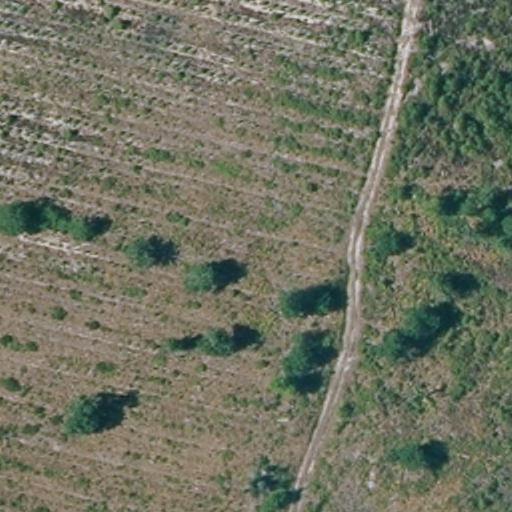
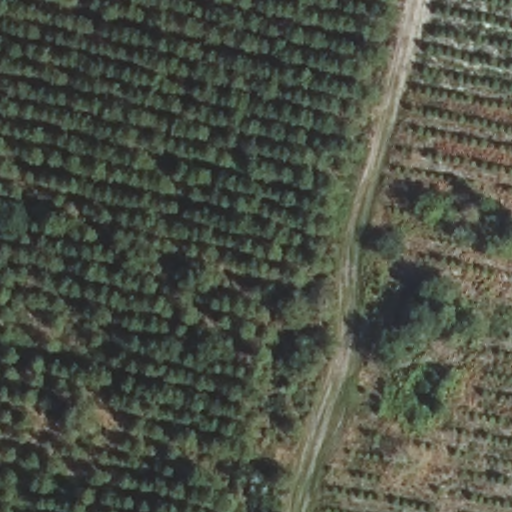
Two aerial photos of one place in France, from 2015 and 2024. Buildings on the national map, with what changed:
[]

